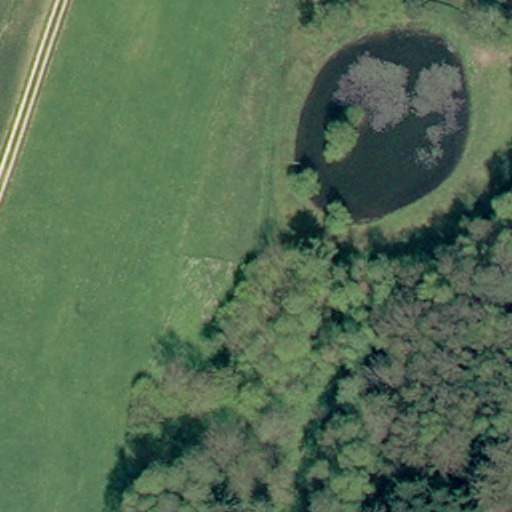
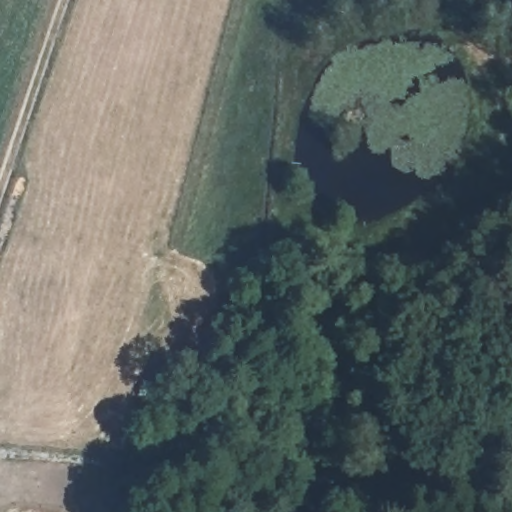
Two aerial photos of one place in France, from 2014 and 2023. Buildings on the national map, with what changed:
[]

